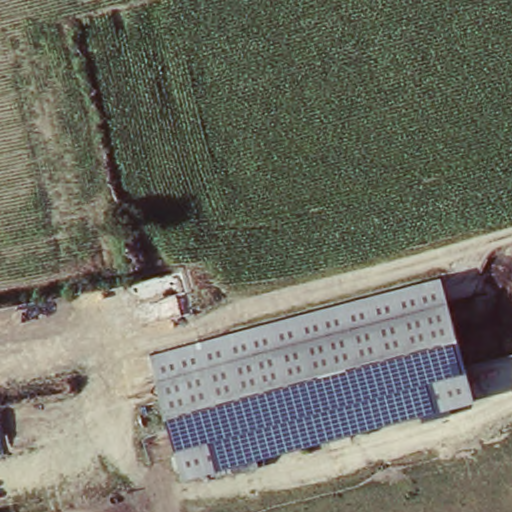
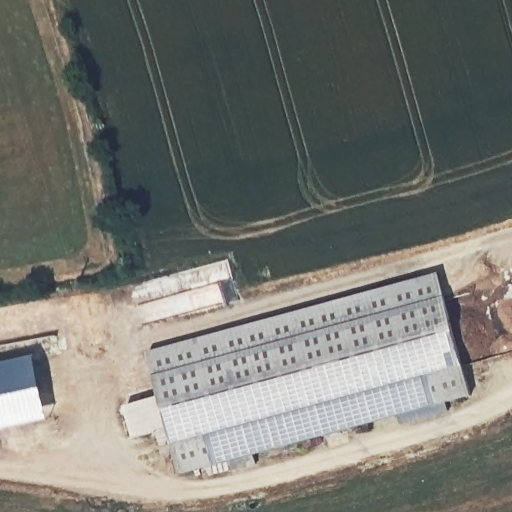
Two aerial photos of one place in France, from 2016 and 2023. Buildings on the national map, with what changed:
unchanged [(437,272),(470,393),(178,470),(146,350),(437,272)]
new [(0,430),(0,364),(38,355),(52,418),(0,430)]

